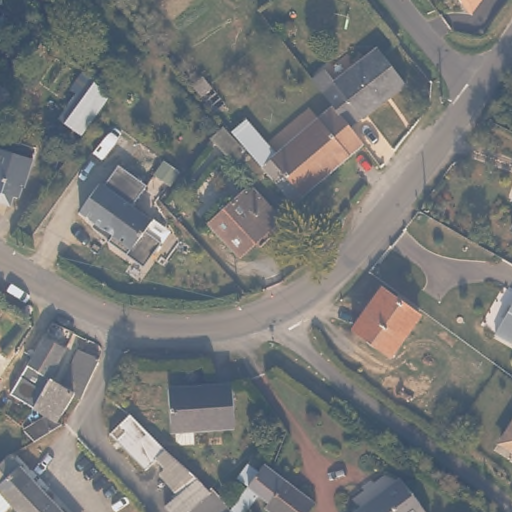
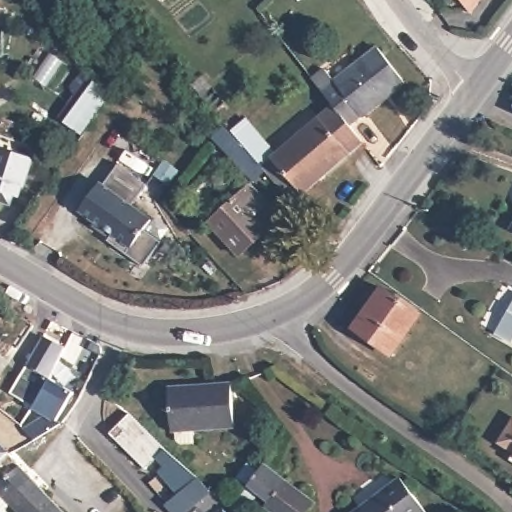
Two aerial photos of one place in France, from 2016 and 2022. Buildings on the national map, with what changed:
unchanged [(470,0),(478,0),(474,5),(470,0)]
unchanged [(315,69),(327,57),(341,76),(382,43),(407,76),(354,121),(343,107),(315,69)]
unchanged [(114,94),(85,135),(60,118),(76,91),(70,86),(81,73),(114,94)]
unchanged [(351,125),(360,136),(293,191),(273,165),(340,111),(351,125)]
unchanged [(268,158),(254,169),(227,136),(225,134),(239,121),(241,125),(268,158)]
unchanged [(0,201),(0,153),(4,145),(40,161),(27,189),(25,189),(20,198),(17,197),(13,207),(0,201)]
unchanged [(147,183),(133,205),(154,219),(146,230),(161,241),(143,270),(106,243),(110,236),(78,216),(118,163),(147,183)]
unchanged [(283,222),(267,234),(265,231),(235,252),(210,219),(252,185),(283,222)]
unchanged [(421,311),(391,351),(355,322),(385,284),(421,311)]
unchanged [(512,306),(512,341),(497,332),(512,306)]
unchanged [(4,389),(30,338),(59,350),(50,378),(30,409),(4,389)]
unchanged [(64,386),(75,358),(90,363),(78,398),(77,399),(72,395),(50,424),(24,443),(17,431),(41,417),(30,409),(50,378),(64,386)]
unchanged [(231,423),(190,422),(190,436),(174,435),(173,423),(168,422),(169,378),(231,378),(231,423)]
unchanged [(215,490),(186,512),(181,512),(170,498),(181,488),(163,461),(168,457),(159,448),(145,462),(110,424),(131,404),(215,490)]
unchanged [(501,438),(510,422),(512,421),(512,452),(503,447),(501,438)]
unchanged [(20,512),(18,512),(5,499),(0,503),(0,459),(4,456),(19,471),(40,492),(20,512)]
unchanged [(512,459),(512,461),(511,461),(512,459)]
unchanged [(323,501),(316,512),(284,512),(274,506),(276,502),(265,494),(253,512),(242,512),(241,511),(256,487),(246,481),(255,467),(265,474),(271,465),(323,501)]
unchanged [(400,476),(426,512),(350,512),(400,476)]
unchanged [(40,492),(59,512),(20,512),(40,492)]

